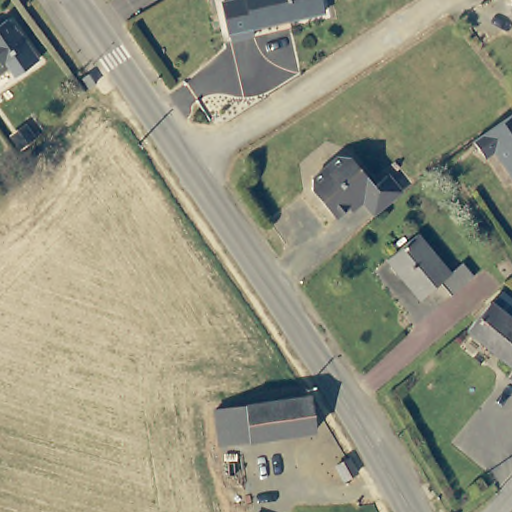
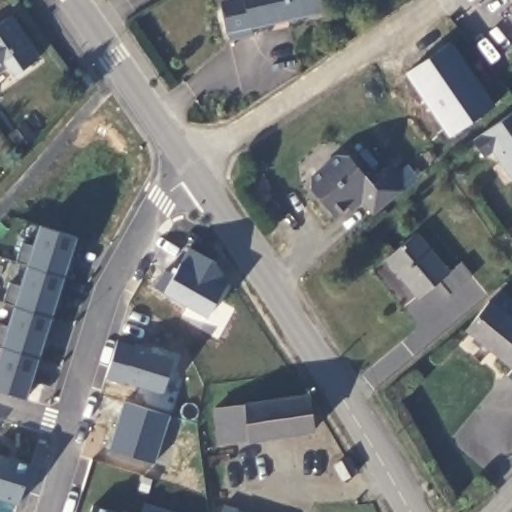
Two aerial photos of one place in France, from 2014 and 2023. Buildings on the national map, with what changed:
unchanged [(249,35),(223,40),(216,0),(317,0),(319,10),(281,19),(269,21),(247,26),(249,35)]
unchanged [(509,0),(512,0),(512,12),(506,2),(509,0)]
unchanged [(5,17),(35,58),(13,74),(7,65),(0,70),(0,20),(5,17)]
unchanged [(482,156),(471,140),(512,113),(512,178),(492,150),(482,156)]
unchanged [(352,204),(336,217),(314,191),(314,174),(336,156),(352,157),(376,185),(388,174),(404,192),(378,214),(366,201),(357,209),(352,204)]
new [(27,398),(0,391),(0,351),(1,348),(0,348),(0,325),(7,327),(14,306),(1,302),(7,282),(19,287),(26,265),(14,262),(20,240),(33,244),(38,227),(76,240),(27,398)]
unchanged [(459,261),(473,277),(452,296),(440,282),(421,300),(385,260),(413,234),(446,272),(459,261)]
new [(162,267),(171,272),(187,244),(213,260),(226,277),(206,313),(153,285),(162,267)]
unchanged [(487,302),(512,320),(512,366),(463,330),(487,302)]
new [(164,395),(122,383),(121,385),(105,381),(115,342),(132,347),(134,343),(152,348),(151,352),(173,358),(164,395)]
unchanged [(512,375),(512,381),(509,378),(512,375)]
unchanged [(211,408),(306,392),(311,429),(215,443),(211,408)]
new [(169,412),(154,460),(108,446),(124,398),(169,412)]
new [(29,463),(17,501),(0,495),(0,454),(29,463)]
unchanged [(334,462),(346,456),(354,473),(343,479),(334,462)]
new [(222,505),(235,508),(234,512),(220,512),(222,505)]
new [(93,507),(109,512),(91,512),(93,507)]

